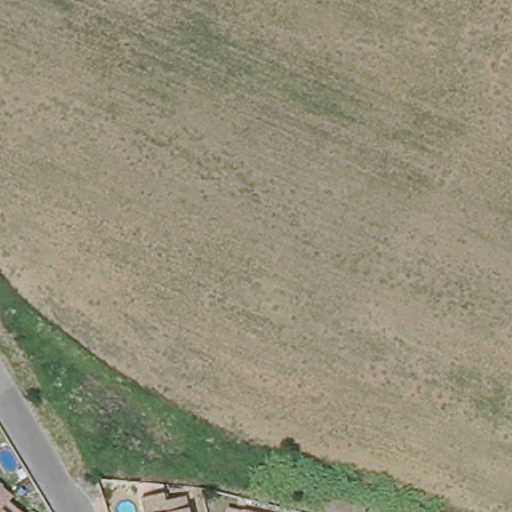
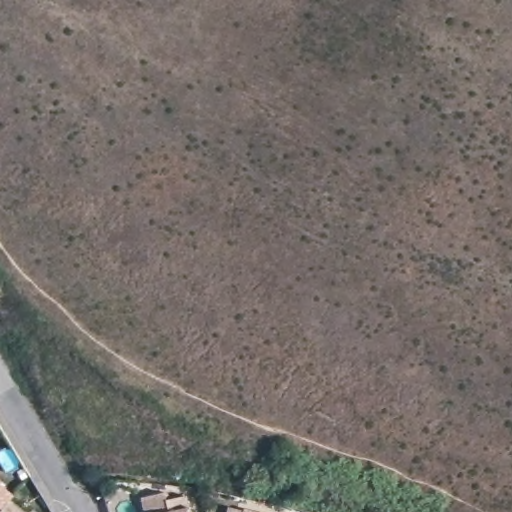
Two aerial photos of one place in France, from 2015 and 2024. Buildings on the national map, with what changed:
unchanged [(9,497),(6,500),(4,503),(3,503),(0,506),(0,489),(9,497)]
unchanged [(169,493),(170,501),(190,496),(193,512),(148,512),(145,499),(169,493)]
unchanged [(4,503),(15,512),(0,512),(0,506),(3,503),(4,503)]
unchanged [(244,505),(273,512),(242,512),(244,505)]

